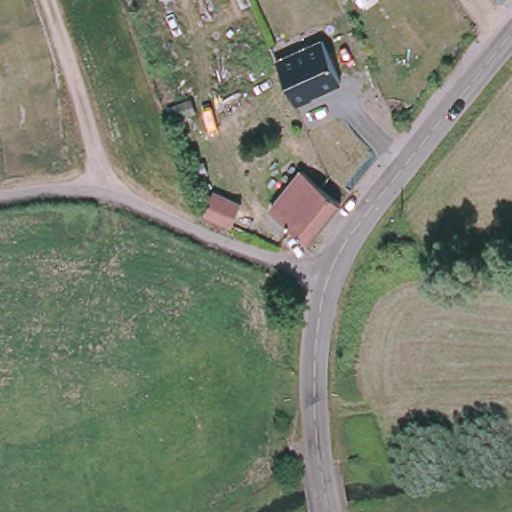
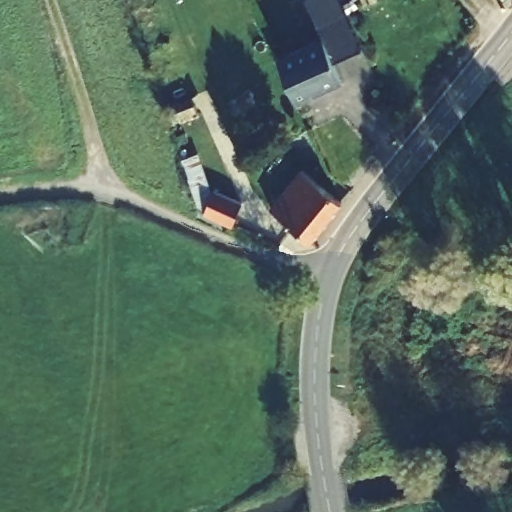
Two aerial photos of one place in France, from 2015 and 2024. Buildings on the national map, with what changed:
new [(306,0),(339,0),(361,51),(334,61),(324,37),(306,0)]
unchanged [(324,37),(343,82),(299,103),(277,57),(324,37)]
unchanged [(343,192),(335,203),(304,244),(270,219),(309,167),(323,177),(343,192)]
unchanged [(215,193),(266,216),(256,239),(205,217),(215,193)]

